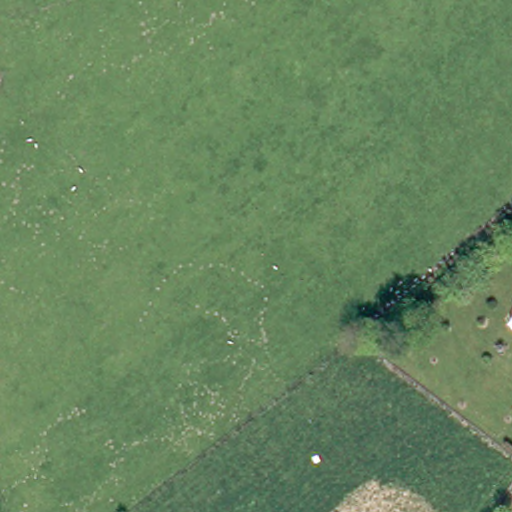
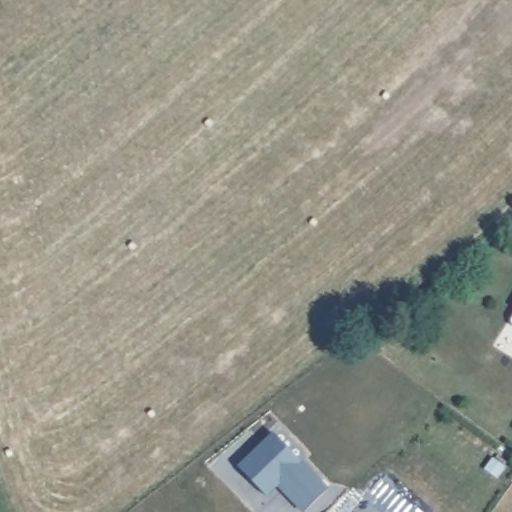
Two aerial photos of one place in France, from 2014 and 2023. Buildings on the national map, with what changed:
new [(265,495),(238,465),(274,432),(330,490),(304,511),(281,483),(265,495)]

